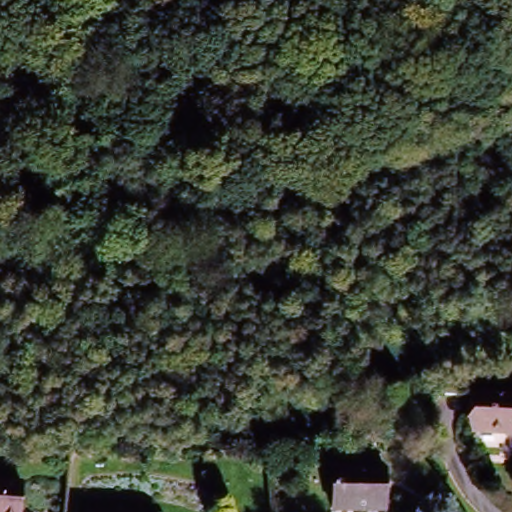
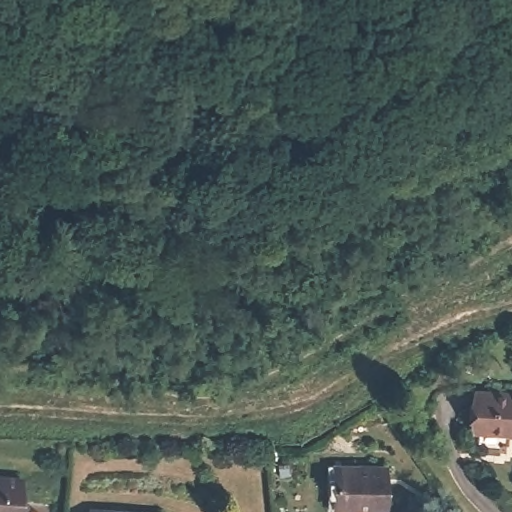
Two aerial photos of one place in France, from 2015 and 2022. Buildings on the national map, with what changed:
unchanged [(477,401),(512,403),(512,437),(476,435),(477,401)]
unchanged [(336,474),(383,477),(381,512),(358,512),(334,511),(336,474)]
unchanged [(0,512),(0,482),(22,482),(23,512),(0,512)]

